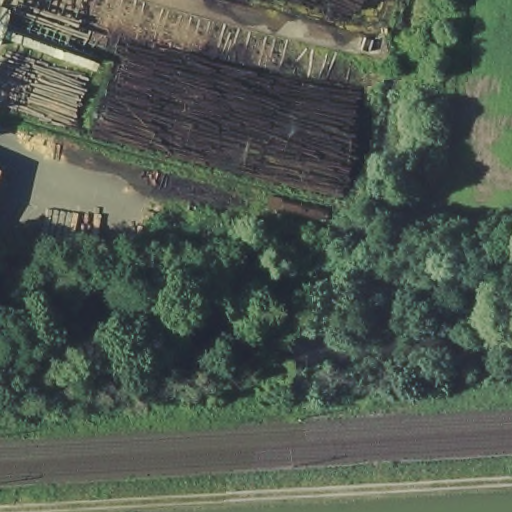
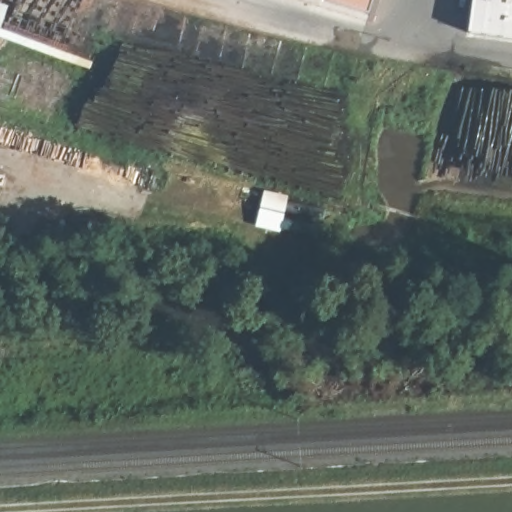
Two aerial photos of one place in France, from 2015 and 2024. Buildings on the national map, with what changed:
new [(311,0),(371,0),(366,18),(311,0)]
new [(465,38),(471,0),(512,0),(512,44),(465,38)]
unchanged [(0,45),(0,8),(12,13),(0,45)]

